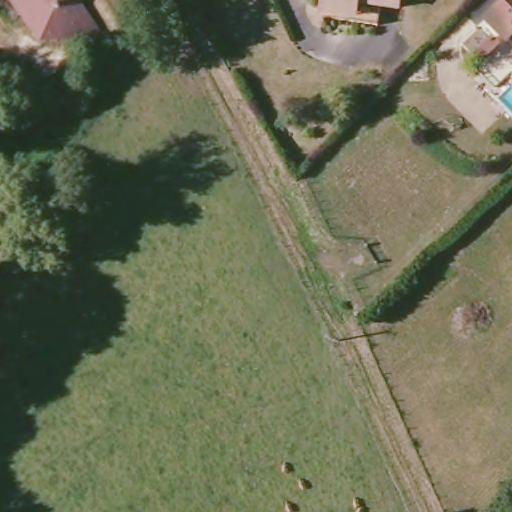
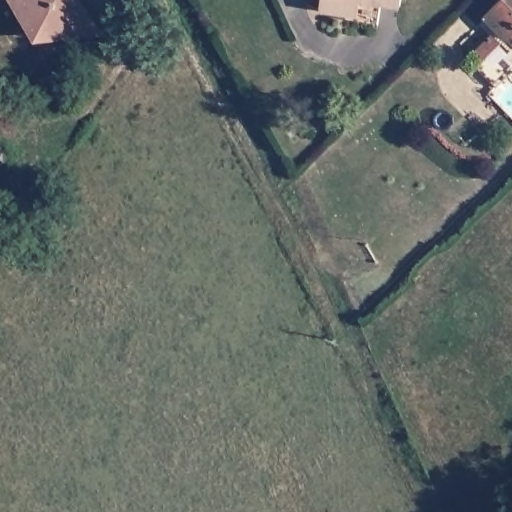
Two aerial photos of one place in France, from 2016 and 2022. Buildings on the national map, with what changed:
unchanged [(11,0),(72,0),(97,44),(34,42),(11,0)]
unchanged [(379,24),(324,19),(325,0),(381,0),(379,24)]
unchanged [(509,37),(490,15),(507,0),(512,0),(512,34),(509,37)]
unchanged [(496,83),(480,63),(490,55),(482,45),(497,33),(512,50),(512,69),(496,83)]

